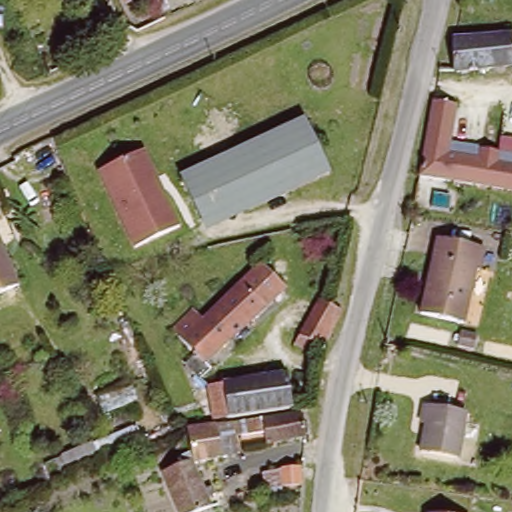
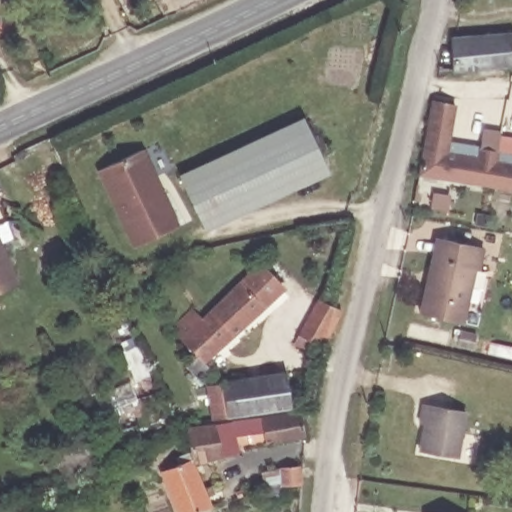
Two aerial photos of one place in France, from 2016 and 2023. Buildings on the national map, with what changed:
unchanged [(450,74),(449,33),(508,27),(512,46),(512,68),(450,74)]
unchanged [(487,162),(490,150),(506,153),(504,164),(512,166),(512,192),(428,178),(442,105),(464,109),(457,146),(468,149),(467,158),(487,162)]
unchanged [(302,119),(327,173),(247,214),(238,197),(218,159),(302,119)]
unchanged [(182,227),(133,250),(97,172),(147,150),(182,227)]
unchanged [(238,197),(216,208),(213,203),(197,211),(180,178),(218,159),(238,197)]
unchanged [(0,189),(7,207),(0,210),(0,189)]
unchanged [(0,287),(0,233),(18,280),(0,287)]
unchanged [(427,285),(431,286),(443,241),(483,252),(477,273),(475,272),(460,324),(419,313),(427,285)]
unchanged [(241,277),(257,263),(282,289),(224,344),(237,357),(215,380),(207,373),(195,383),(181,364),(191,355),(171,328),(193,306),(202,315),(237,284),(232,279),(237,274),(241,277)]
unchanged [(300,333),(324,290),(340,299),(345,302),(325,349),(300,333)]
unchanged [(70,375),(59,380),(48,351),(59,345),(70,375)]
unchanged [(227,416),(225,411),(204,414),(200,385),(289,376),(290,381),(308,380),(315,375),(312,400),(301,403),(227,416)]
unchanged [(110,403),(103,386),(132,376),(137,393),(110,403)]
unchanged [(305,433),(257,440),(252,425),(237,431),(241,446),(197,464),(208,491),(215,488),(220,498),(212,501),(215,507),(204,512),(181,512),(164,470),(178,464),(175,456),(192,449),(183,424),(302,409),(305,433)]
unchanged [(422,459),(426,432),(421,431),(423,413),(465,419),(459,464),(422,459)]
unchanged [(62,454),(137,425),(147,445),(75,480),(62,454)]

